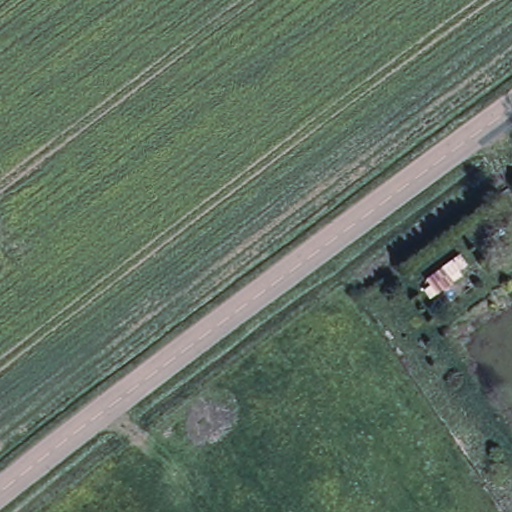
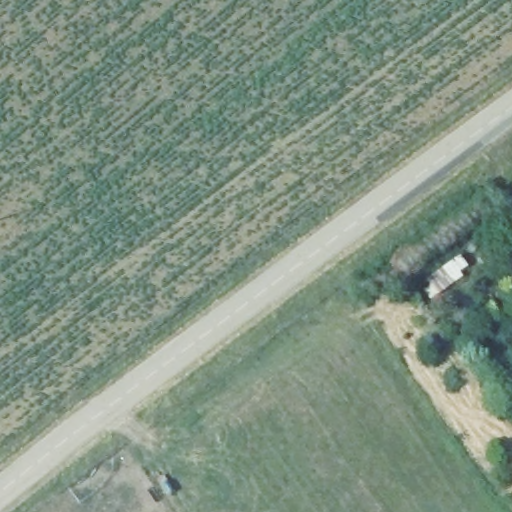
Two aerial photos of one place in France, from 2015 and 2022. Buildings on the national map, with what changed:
unchanged [(438,266),(455,255),(463,267),(446,278),(438,266)]

